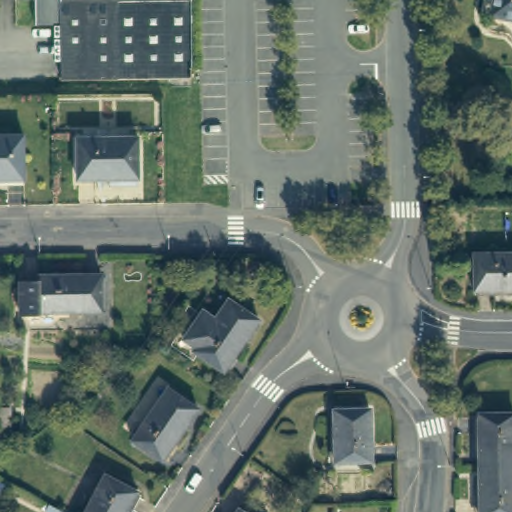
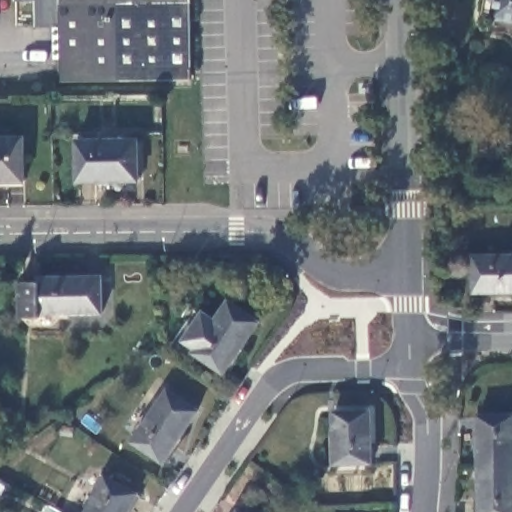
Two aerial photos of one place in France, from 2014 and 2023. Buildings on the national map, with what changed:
unchanged [(61,0),(61,22),(37,22),(37,0),(61,0)]
unchanged [(190,0),(192,74),(62,77),(61,22),(61,0),(190,0)]
unchanged [(490,12),(492,0),(512,0),(512,16),(490,12)]
unchanged [(15,178),(0,178),(0,133),(14,133),(15,178)]
unchanged [(138,142),(139,181),(80,182),(79,142),(138,142)]
unchanged [(512,257),(512,292),(473,292),(473,258),(512,257)]
unchanged [(39,283),(39,279),(101,278),(102,314),(40,315),(39,319),(21,319),(22,283),(39,283)]
unchanged [(217,373),(186,352),(187,350),(177,342),(195,313),(207,321),(220,302),(250,323),(217,373)]
unchanged [(160,462),(131,442),(165,391),(195,412),(160,462)]
unchanged [(369,408),(371,462),(335,462),(333,409),(369,408)]
unchanged [(473,416),(508,416),(510,468),(474,468),(473,416)]
unchanged [(510,468),(510,512),(474,512),(474,468),(510,468)]
unchanged [(102,477),(134,493),(124,512),(83,512),(102,477)]
unchanged [(238,511),(240,512),(237,512),(238,511)]

